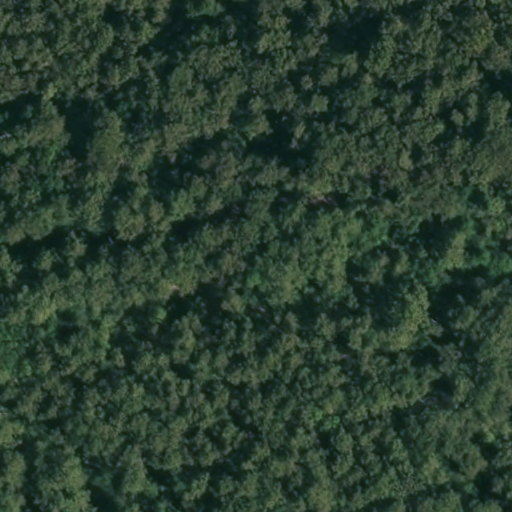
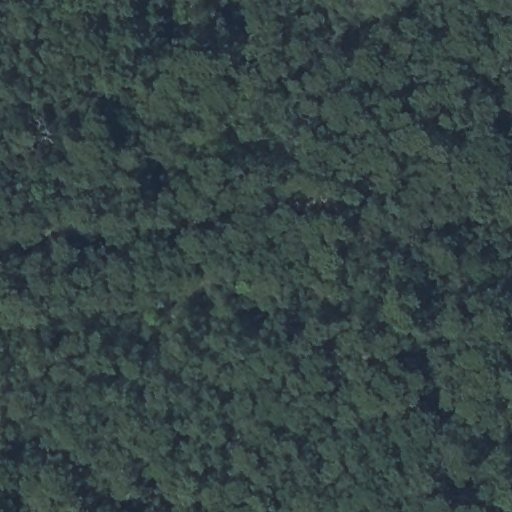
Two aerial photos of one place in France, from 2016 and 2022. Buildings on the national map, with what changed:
[]

